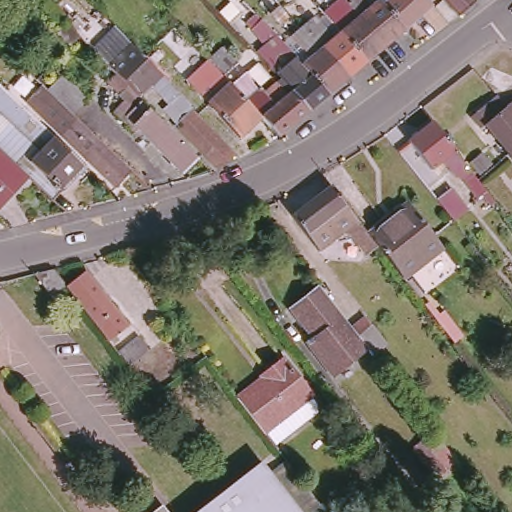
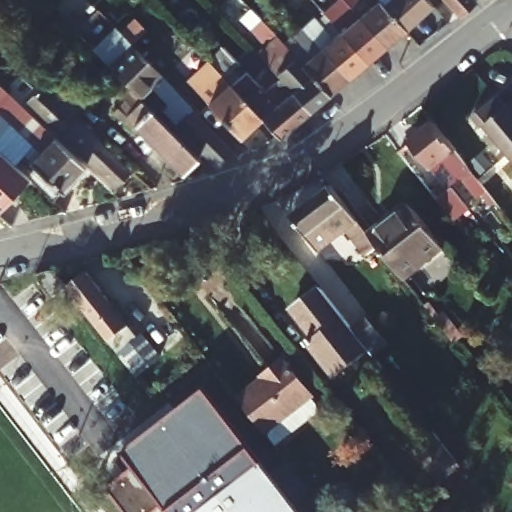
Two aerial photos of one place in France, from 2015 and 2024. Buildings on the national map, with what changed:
unchanged [(271,34),(261,44),(250,33),(254,29),(228,2),(231,0),(238,0),(271,34)]
unchanged [(386,48),(349,7),(354,3),(358,6),(360,4),(367,12),(373,7),(366,0),(377,0),(406,31),(386,48)]
unchanged [(433,8),(406,31),(377,0),(425,0),(433,8)]
unchanged [(460,14),(447,0),(476,0),(460,14)]
unchanged [(367,64),(340,34),(319,10),(324,5),(346,30),(349,27),(340,16),(349,7),(386,48),(367,64)]
unchanged [(349,79),(302,29),(313,19),(333,41),(340,34),(367,64),(349,79)]
unchanged [(302,66),(310,59),(291,39),(302,29),(349,79),(330,96),(302,66)]
unchanged [(281,80),(256,54),(274,38),(302,66),(330,96),(311,111),(281,80)]
unchanged [(221,166),(176,121),(185,112),(168,94),(166,96),(151,81),(139,92),(128,81),(111,64),(133,42),(150,61),(192,105),(191,107),(237,151),(221,166)]
unchanged [(208,62),(223,48),(238,64),(231,71),(229,71),(223,78),(208,62)]
unchanged [(231,87),(244,75),(264,95),(281,80),(311,111),(280,138),(262,119),(231,87)]
unchanged [(46,189),(28,172),(26,170),(24,168),(0,146),(0,80),(12,91),(38,116),(44,122),(77,153),(82,157),(49,192),(46,189)]
unchanged [(74,111),(72,113),(125,164),(111,179),(58,128),(68,117),(49,99),(39,110),(29,100),(45,83),(74,111)]
unchanged [(240,140),(208,107),(229,85),(231,87),(262,119),(240,140)]
unchanged [(185,171),(139,125),(136,129),(114,108),(125,97),(122,94),(128,89),(133,94),(129,99),(135,105),(142,98),(200,155),(185,171)]
unchanged [(491,124),(486,128),(477,116),(503,96),(511,106),(512,105),(512,149),(491,124)]
unchanged [(480,181),(489,192),(481,199),(464,177),(453,170),(446,161),(434,170),(411,141),(434,123),(480,181)]
unchanged [(0,196),(0,146),(24,168),(0,196)]
unchanged [(366,225),(376,238),(364,248),(344,224),(317,243),(289,207),(329,178),(366,225)]
unchanged [(441,199),(454,188),(470,209),(457,219),(441,199)]
unchanged [(376,238),(366,225),(405,193),(439,236),(398,267),(376,238)]
unchanged [(48,298),(31,275),(51,270),(64,287),(48,298)]
unchanged [(85,273),(128,327),(108,343),(65,288),(85,273)]
unchanged [(391,348),(377,358),(371,351),(337,377),(310,342),(316,337),(296,309),(323,289),(354,330),(369,319),(391,348)]
unchanged [(124,353),(144,338),(156,353),(136,369),(124,353)]
unchanged [(264,432),(238,398),(265,376),(261,372),(283,355),(319,402),(318,414),(288,438),(276,448),(264,432)]
new [(187,512),(165,512),(158,503),(147,512),(130,512),(109,485),(134,465),(123,450),(204,388),(261,455),(187,512)]
unchanged [(459,462),(441,475),(416,444),(434,430),(459,462)]
unchanged [(270,467),(286,456),(329,512),(187,512),(261,455),(270,467)]
unchanged [(165,512),(147,512),(158,503),(165,512)]

